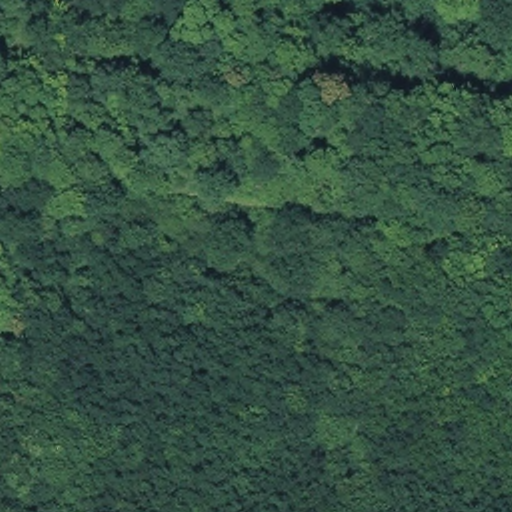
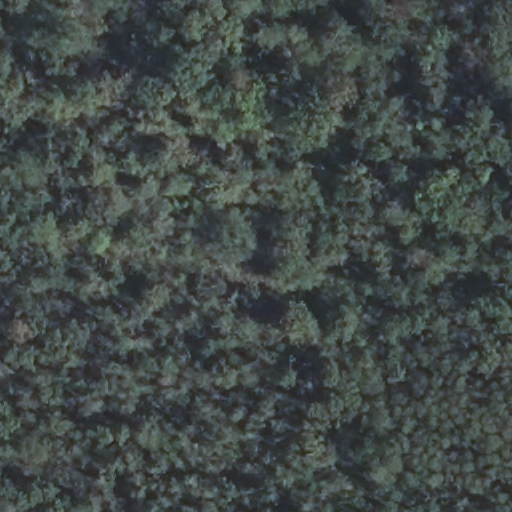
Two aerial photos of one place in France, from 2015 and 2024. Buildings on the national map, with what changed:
unchanged [(405,271),(408,244),(429,247),(425,273),(405,271)]

